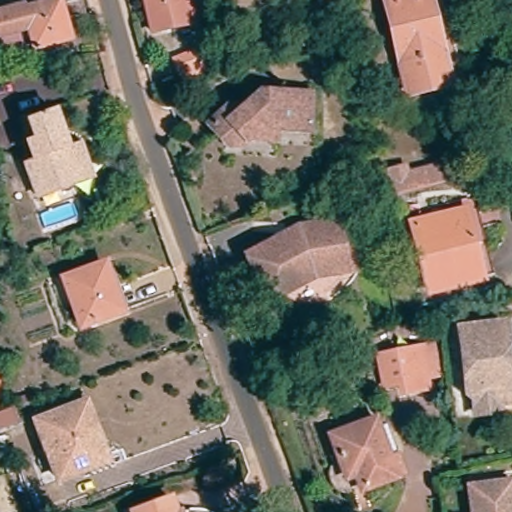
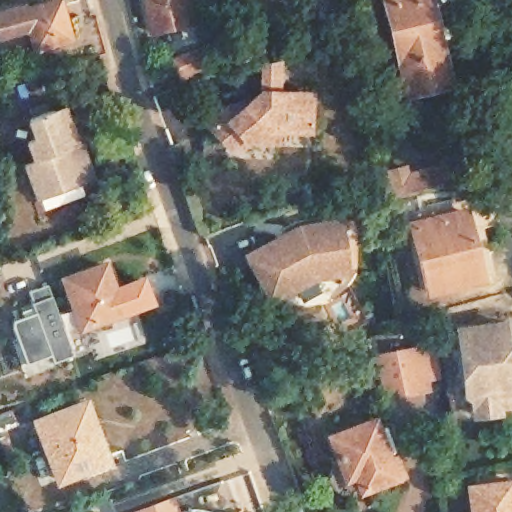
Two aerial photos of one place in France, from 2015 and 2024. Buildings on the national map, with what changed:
unchanged [(150,33),(142,0),(194,0),(199,22),(150,33)]
unchanged [(405,94),(383,0),(428,0),(448,84),(405,94)]
unchanged [(65,41),(34,49),(28,29),(0,36),(0,14),(24,8),(25,11),(56,4),(65,41)]
unchanged [(206,73),(175,84),(166,64),(199,53),(206,73)]
unchanged [(229,137),(224,142),(208,142),(190,121),(208,104),(220,105),(237,90),(287,94),(285,126),(256,125),(255,139),(229,137)]
unchanged [(30,168),(38,165),(32,144),(40,141),(33,124),(57,115),(69,150),(82,145),(93,176),(39,195),(30,168)]
unchanged [(393,198),(387,172),(404,166),(406,174),(441,165),(446,184),(393,198)]
new [(83,184),(86,194),(41,212),(36,201),(83,184)]
unchanged [(481,279),(425,293),(409,225),(464,211),(481,279)]
unchanged [(318,279),(274,299),(251,253),(301,231),(343,228),(348,275),(318,279)]
unchanged [(120,313),(78,328),(62,280),(103,265),(120,313)]
new [(31,310),(26,291),(47,284),(76,354),(24,378),(20,365),(24,364),(9,319),(31,310)]
unchanged [(465,420),(462,405),(457,401),(449,335),(493,330),(497,357),(499,374),(504,408),(487,409),(487,418),(465,420)]
unchanged [(409,399),(408,388),(390,389),(386,359),(390,357),(409,351),(409,356),(423,354),(429,398),(418,399),(409,399)]
unchanged [(83,404),(104,462),(55,481),(34,423),(83,404)]
unchanged [(377,422),(399,479),(363,494),(357,478),(347,481),(331,439),(377,422)]
unchanged [(466,487),(508,483),(512,512),(469,512),(466,487)]
unchanged [(172,501),(176,512),(139,512),(172,501)]

